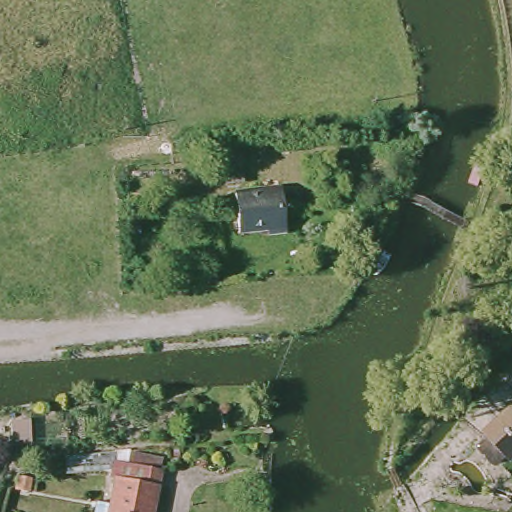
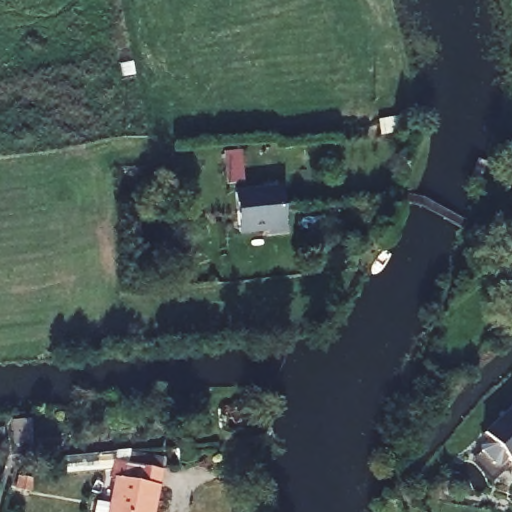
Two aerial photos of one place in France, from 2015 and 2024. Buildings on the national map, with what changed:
unchanged [(236,189),(229,189),(226,157),(245,156),(248,188),(236,189)]
unchanged [(245,237),(241,215),(237,197),(283,189),(286,210),(289,231),(245,237)]
unchanged [(512,466),(483,437),(512,408),(512,466)]
unchanged [(98,502),(113,504),(118,483),(110,481),(111,476),(68,479),(70,461),(131,456),(130,459),(164,467),(163,478),(155,512),(96,512),(98,502)]
unchanged [(437,512),(435,512),(436,511),(437,512)]

